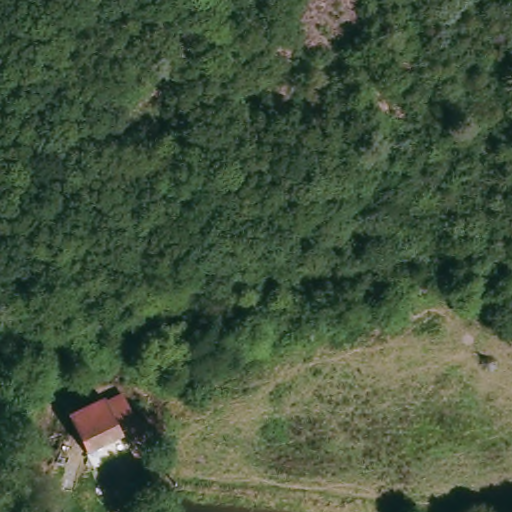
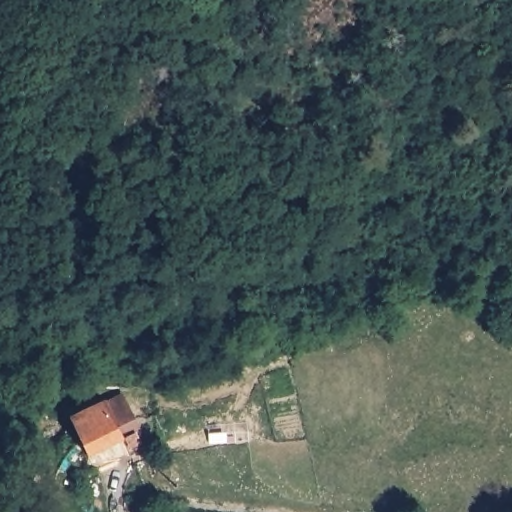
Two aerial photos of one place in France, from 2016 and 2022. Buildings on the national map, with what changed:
unchanged [(109,401),(129,444),(93,462),(74,417),(109,401)]

